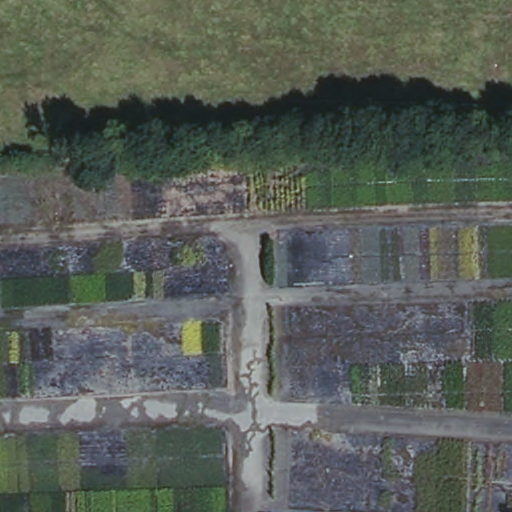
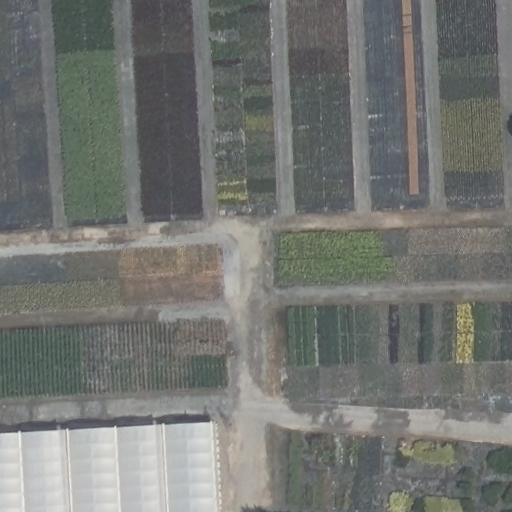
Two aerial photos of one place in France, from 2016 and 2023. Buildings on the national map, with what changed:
new [(217,420),(221,512),(0,512),(0,432),(217,420)]

